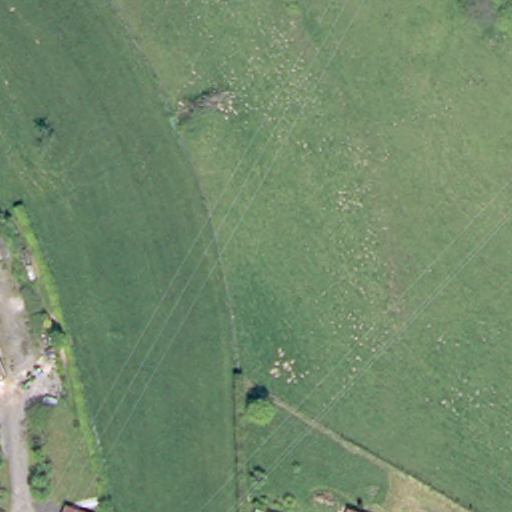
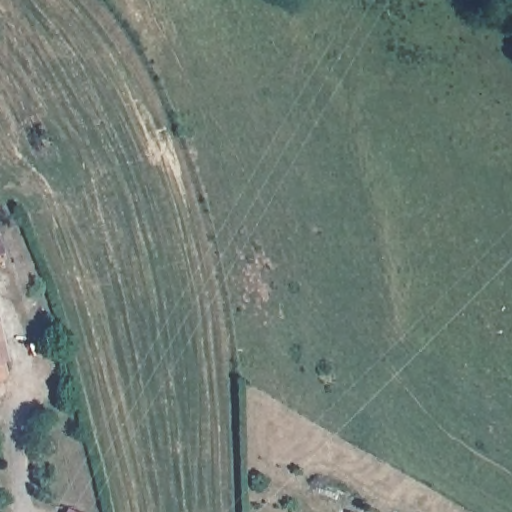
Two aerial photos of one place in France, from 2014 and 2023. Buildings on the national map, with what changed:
unchanged [(3,253),(0,254),(0,246),(3,253)]
unchanged [(3,356),(0,358),(0,350),(3,356)]
unchanged [(3,373),(0,375),(0,363),(3,373)]
unchanged [(81,512),(64,512),(66,506),(81,512)]

